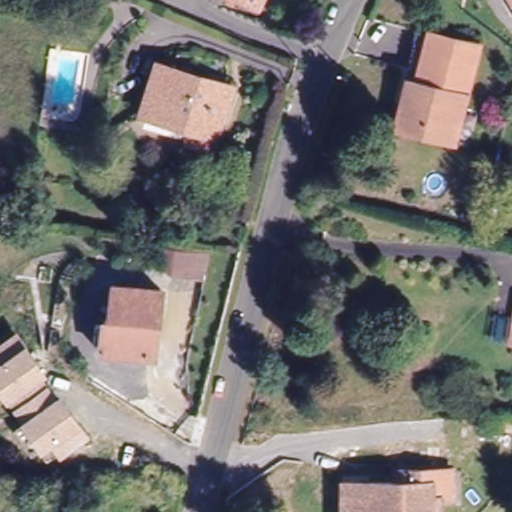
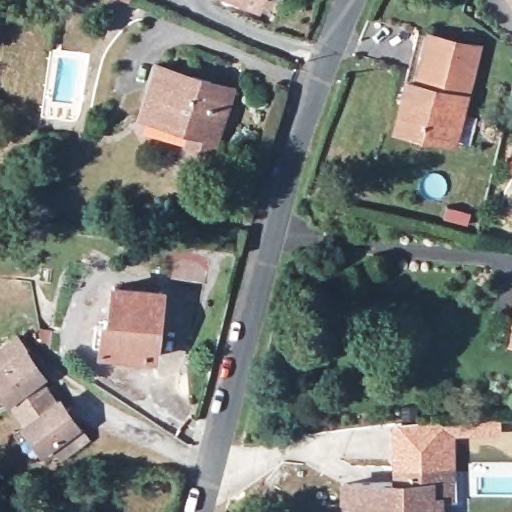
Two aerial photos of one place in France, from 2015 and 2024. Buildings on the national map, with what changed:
unchanged [(135,0),(144,0),(142,3),(135,0)]
unchanged [(255,10),(233,0),(260,0),(255,10)]
unchanged [(509,0),(512,0),(512,5),(509,0)]
unchanged [(425,75),(435,39),(484,52),(468,110),(456,107),(446,142),(402,130),(408,106),(413,107),(417,88),(411,87),(415,73),(425,75)]
unchanged [(211,149),(189,142),(193,127),(147,114),(162,65),(230,86),(211,149)]
unchanged [(100,347),(105,319),(112,320),(117,286),(164,294),(158,328),(151,326),(145,355),(100,347)]
unchanged [(507,346),(512,329),(512,347),(507,346)]
unchanged [(27,417),(10,392),(0,398),(0,362),(2,360),(0,356),(0,343),(19,331),(44,370),(40,372),(56,397),(61,395),(86,434),(61,450),(52,437),(43,443),(31,451),(14,425),(27,417)]
new [(392,470),(391,471),(391,421),(501,419),(500,434),(455,435),(456,472),(452,471),(392,470)]
unchanged [(452,499),(436,499),(436,512),(345,512),(345,482),(392,482),(392,470),(452,471),(452,499)]

